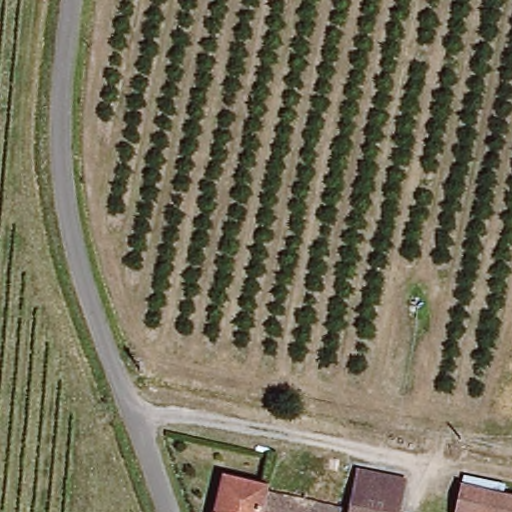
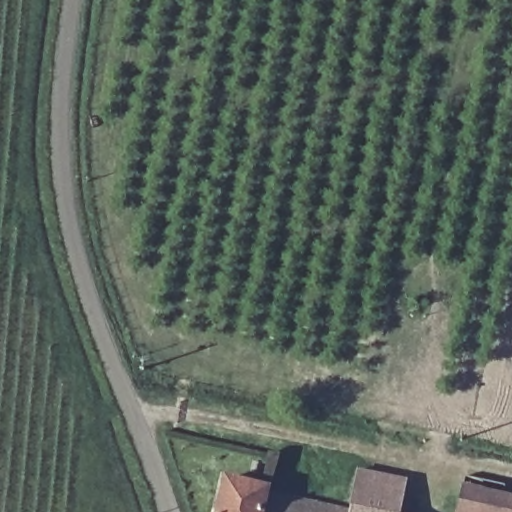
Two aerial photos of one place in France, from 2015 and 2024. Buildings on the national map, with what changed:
unchanged [(397,490),(392,511),(394,512),(229,512),(240,470),(270,477),(277,485),(340,501),(347,476),(397,490)]
unchanged [(512,496),(512,512),(457,512),(465,485),(512,496)]

